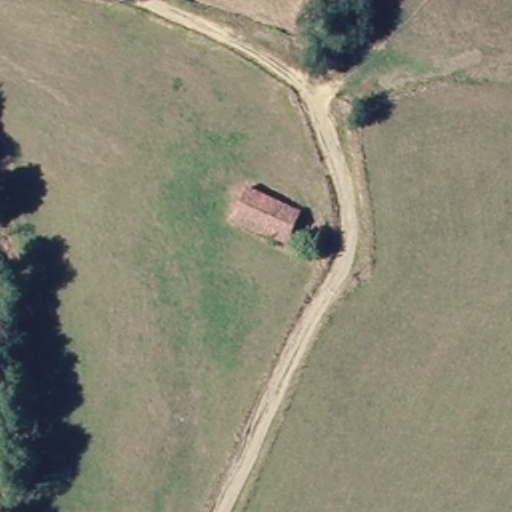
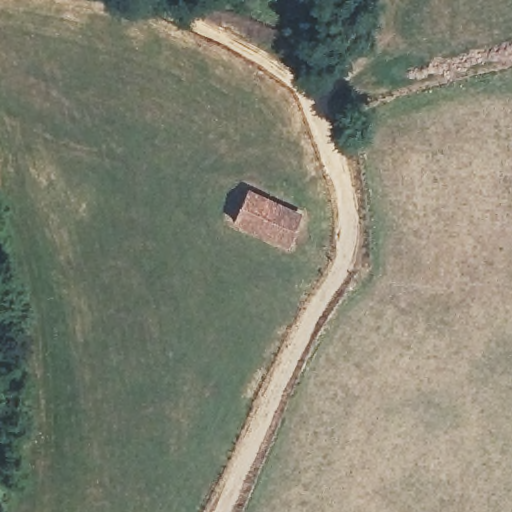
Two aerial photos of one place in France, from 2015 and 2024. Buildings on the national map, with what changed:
unchanged [(227,222),(236,204),(241,194),(299,217),(284,248),(227,222)]

